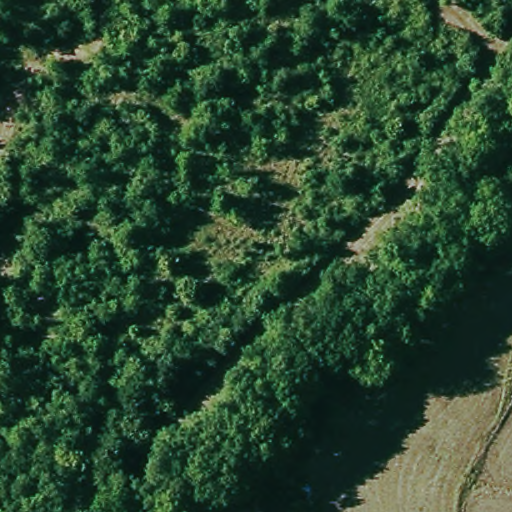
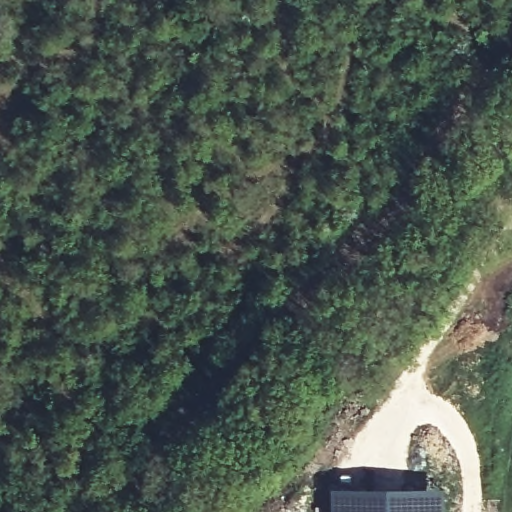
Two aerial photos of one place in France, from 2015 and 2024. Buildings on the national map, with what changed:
new [(407,485),(444,487),(444,512),(331,512),(330,485),(407,485)]

